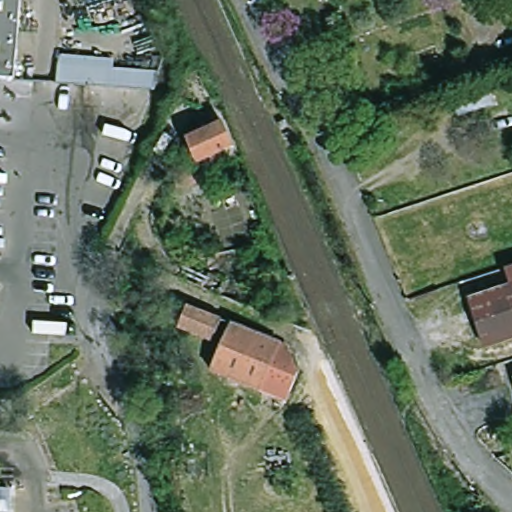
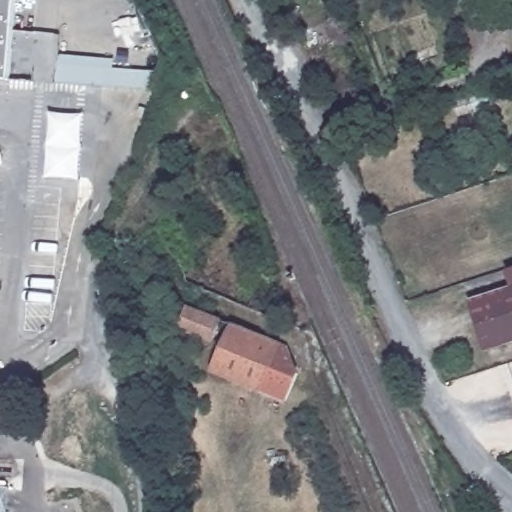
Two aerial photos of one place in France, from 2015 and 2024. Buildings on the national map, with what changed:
unchanged [(0,82),(0,0),(20,0),(14,83),(0,82)]
unchanged [(153,89),(57,82),(59,54),(113,58),(112,67),(157,70),(153,89)]
unchanged [(493,103),(457,114),(452,97),(487,86),(493,103)]
demolished [(194,152),(187,138),(222,120),(233,144),(221,149),(208,156),(198,160),(194,152)]
unchanged [(507,273),(512,272),(512,291),(507,273)]
unchanged [(487,353),(472,307),(512,294),(512,346),(487,353)]
unchanged [(302,373),(292,398),(220,372),(229,345),(184,328),(191,308),(292,346),(302,373)]
unchanged [(509,447),(512,445),(512,455),(511,455),(509,447)]
unchanged [(13,512),(0,512),(0,485),(15,486),(13,512)]

